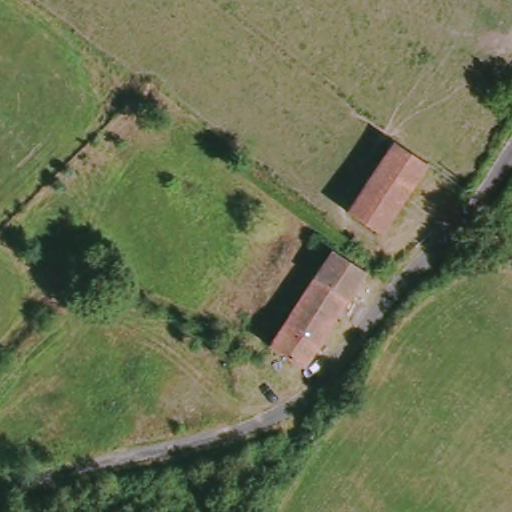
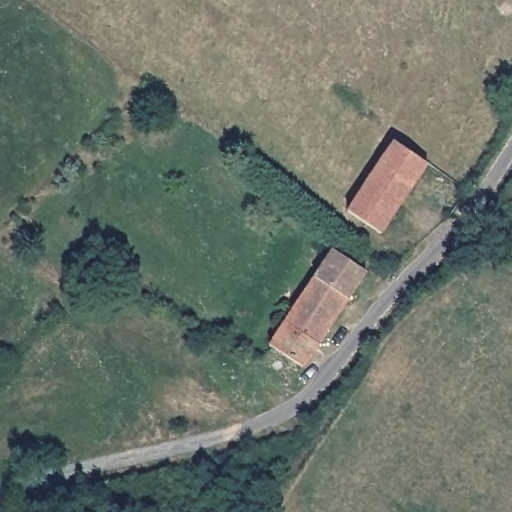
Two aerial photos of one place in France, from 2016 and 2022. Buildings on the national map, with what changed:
unchanged [(435,172),(388,240),(353,219),(402,148),(435,172)]
unchanged [(335,253),(370,277),(308,373),(273,347),(335,253)]

